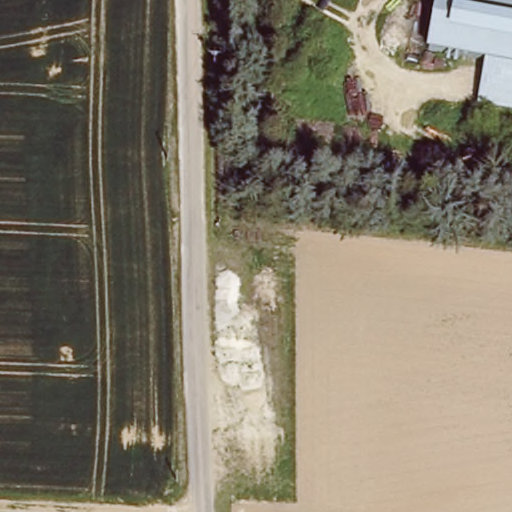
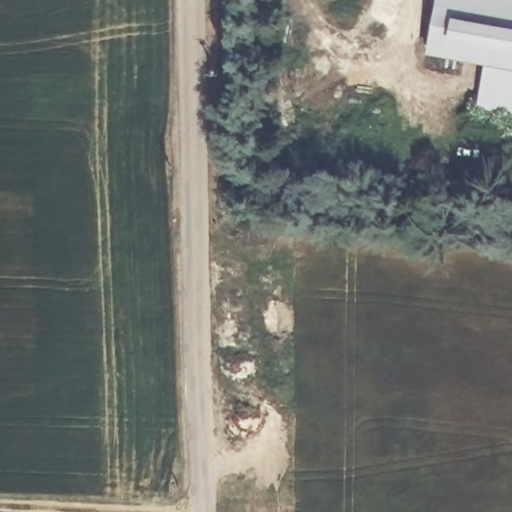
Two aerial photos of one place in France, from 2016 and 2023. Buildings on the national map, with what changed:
unchanged [(485,63),(425,52),(435,0),(512,0),(512,110),(477,104),(485,63)]

